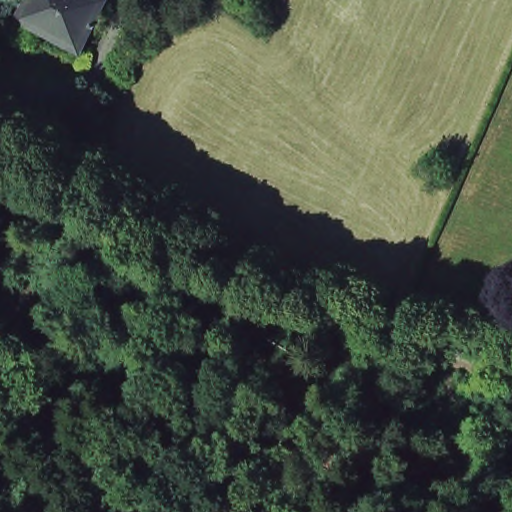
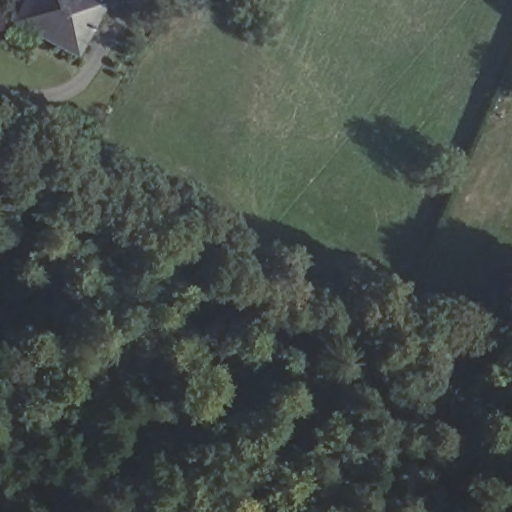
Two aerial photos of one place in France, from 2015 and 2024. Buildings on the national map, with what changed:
unchanged [(28,0),(87,0),(101,8),(75,57),(15,25),(28,0)]

